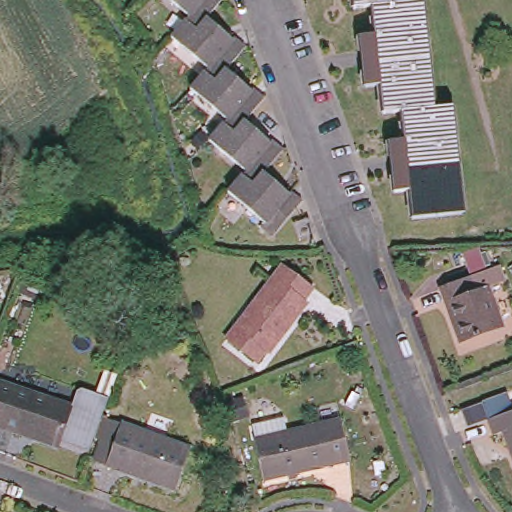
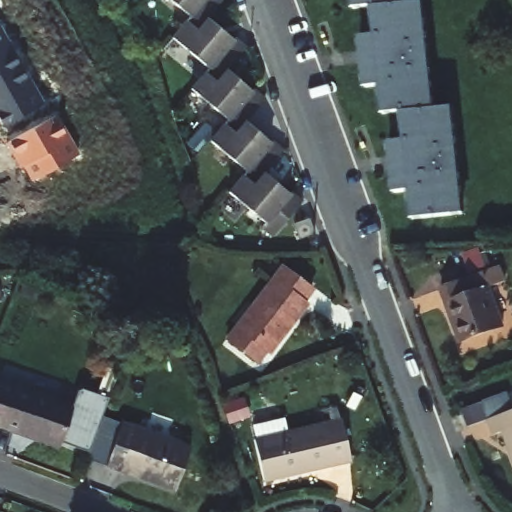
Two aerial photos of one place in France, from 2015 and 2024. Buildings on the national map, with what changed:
unchanged [(260,229),(265,224),(228,193),(245,172),(210,141),(227,120),(190,90),(207,69),(170,37),(188,16),(169,0),(222,0),(207,19),(232,41),(233,38),(245,48),(226,70),(251,91),(252,89),(264,99),(245,122),(270,143),(272,141),(282,151),(265,174),(289,195),(290,193),(301,202),(272,238),(260,229)]
unchanged [(357,0),(397,0),(377,2),(357,4),(357,0)]
unchanged [(426,0),(430,39),(432,39),(434,62),(432,63),(437,104),(406,108),(387,109),(385,83),(368,84),(362,32),(380,31),(377,2),(397,0),(426,0)]
new [(0,121),(0,28),(43,103),(3,126),(0,121)]
unchanged [(437,104),(455,103),(459,144),(461,144),(463,168),(462,168),(466,210),(417,214),(414,187),(398,188),(393,137),(408,136),(406,108),(437,104)]
new [(5,143),(56,115),(78,153),(30,181),(22,166),(20,168),(5,143)]
unchanged [(297,238),(292,224),(307,219),(312,233),(297,238)]
unchanged [(315,290),(307,301),(310,305),(273,351),(270,349),(260,361),(230,338),(240,325),(242,327),(257,306),(255,304),(285,267),(315,290)]
unchanged [(481,295),(493,290),(507,327),(465,343),(455,317),(459,315),(455,305),(450,305),(445,291),(476,279),(481,295)]
unchanged [(24,428),(23,432),(0,424),(0,391),(4,380),(78,406),(85,391),(88,388),(117,399),(97,454),(24,428)]
unchanged [(267,481),(258,440),(335,423),(333,416),(343,413),(345,421),(355,460),(267,481)]
unchanged [(498,435),(492,421),(512,414),(512,439),(509,431),(498,435)]
unchanged [(185,491),(115,466),(100,460),(115,419),(130,424),(200,449),(185,491)]

